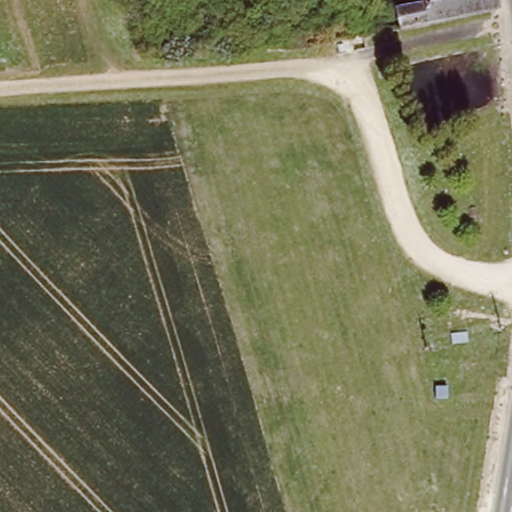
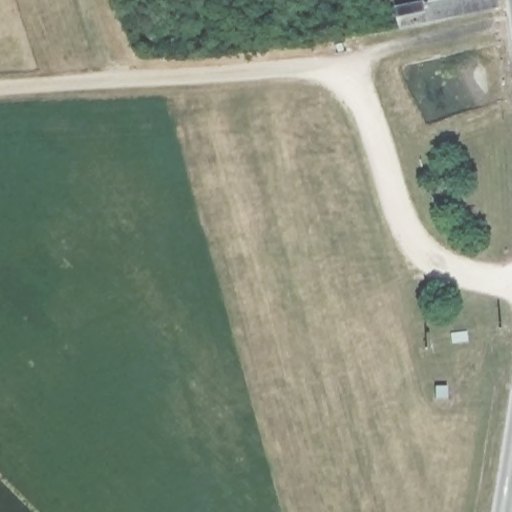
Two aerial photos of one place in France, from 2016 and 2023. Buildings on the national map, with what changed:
unchanged [(417,1),(417,0),(493,0),(495,9),(395,30),(390,7),(417,1)]

